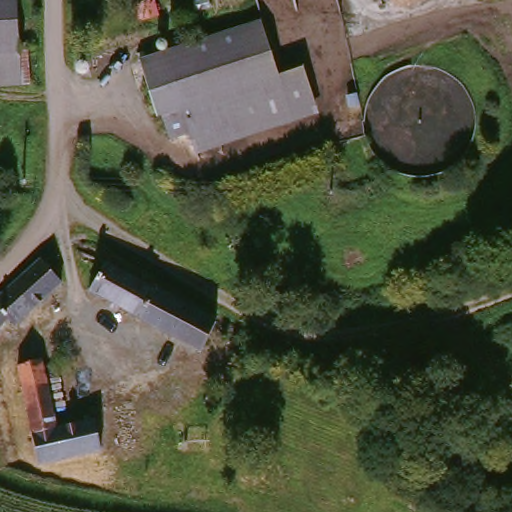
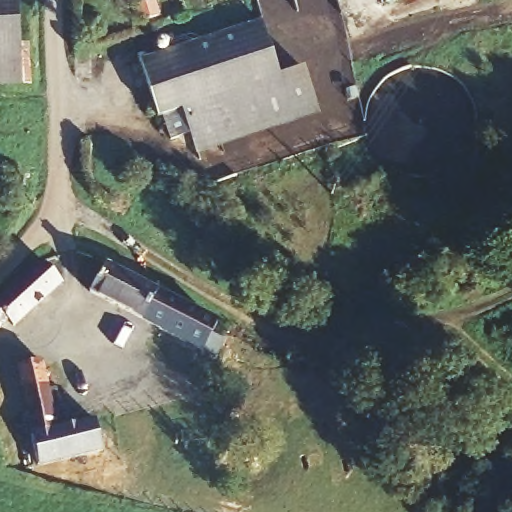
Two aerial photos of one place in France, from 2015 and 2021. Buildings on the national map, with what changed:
unchanged [(0,86),(0,0),(27,0),(21,86),(0,86)]
unchanged [(258,24),(276,76),(204,101),(162,117),(157,119),(137,62),(258,24)]
unchanged [(303,68),(316,106),(196,150),(193,141),(216,134),(204,101),(276,76),(303,68)]
unchanged [(191,134),(169,143),(162,117),(204,101),(216,134),(193,141),(191,134)]
unchanged [(156,174),(166,184),(164,187),(158,193),(148,183),(151,180),(156,174)]
unchanged [(0,337),(0,296),(42,250),(64,267),(1,338),(0,337)]
unchanged [(117,269),(179,302),(189,307),(212,319),(198,347),(176,337),(146,322),(128,313),(88,289),(102,260),(117,269)]
unchanged [(18,377),(49,370),(57,424),(90,419),(93,449),(88,451),(39,459),(18,377)]

